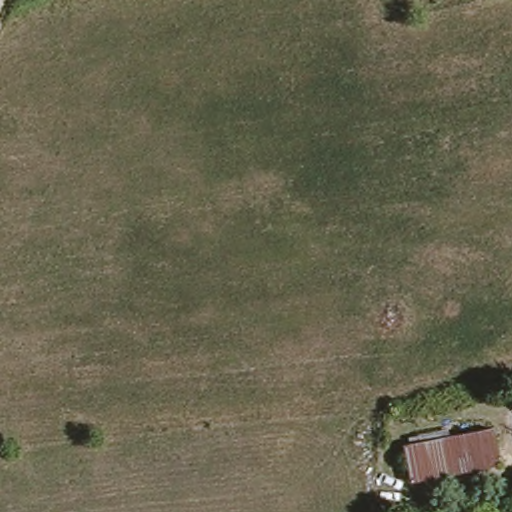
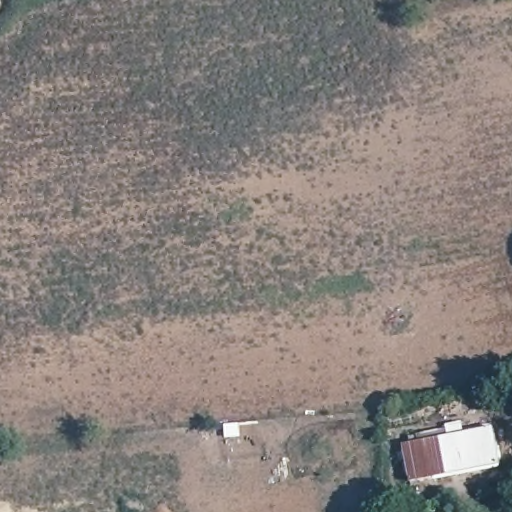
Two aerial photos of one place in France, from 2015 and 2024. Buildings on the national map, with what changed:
unchanged [(492,429),(499,463),(406,481),(400,447),(492,429)]

